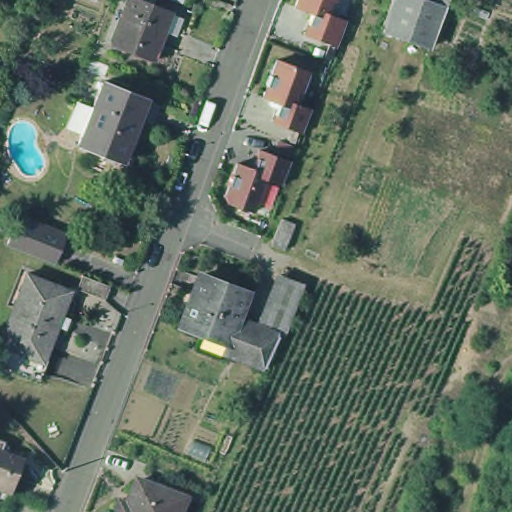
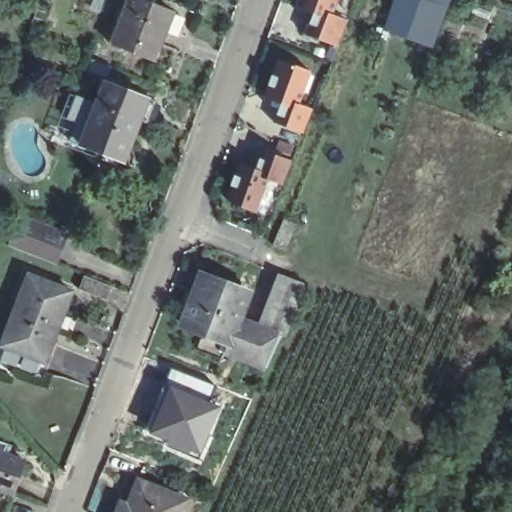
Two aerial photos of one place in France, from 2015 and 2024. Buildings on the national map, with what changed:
unchanged [(161,0),(159,4),(176,11),(157,59),(113,43),(131,0),(161,0)]
unchanged [(344,19),(335,45),(302,31),(309,12),(296,7),(298,0),(334,0),(329,12),(344,19)]
unchanged [(452,0),(437,40),(385,22),(393,0),(452,0)]
unchanged [(302,105),(313,109),(302,134),(272,124),(276,104),(261,101),(277,57),(315,70),(302,105)]
unchanged [(73,118),(74,117),(75,116),(86,89),(103,95),(112,71),(161,91),(154,111),(147,109),(137,135),(141,136),(142,139),(142,150),(142,154),(140,158),(136,161),(132,163),(126,164),(123,164),(120,164),(114,161),(101,155),(104,146),(86,139),(84,140),(82,141),(80,141),(77,141),(75,140),(73,139),(71,138),(70,135),(69,134),(68,129),(68,125),(69,123),(70,121),(72,119),(73,118)]
unchanged [(282,186),(267,179),(254,212),(220,199),(236,158),(253,162),(259,144),(298,155),(282,186)]
unchanged [(281,218),(293,223),(283,249),(270,243),(281,218)]
unchanged [(28,222),(52,233),(42,258),(18,248),(28,222)]
unchanged [(264,317),(284,264),(306,271),(307,272),(287,324),(284,323),(264,317)]
unchanged [(227,342),(225,346),(203,338),(208,324),(185,314),(204,265),(250,283),(240,309),(264,317),(284,323),(269,355),(227,342)]
unchanged [(9,342),(3,339),(30,269),(74,287),(46,356),(45,355),(39,370),(3,357),(9,342)]
unchanged [(87,270),(115,280),(109,294),(82,284),(87,270)]
new [(223,406),(201,456),(147,433),(168,386),(223,406)]
unchanged [(12,439),(9,449),(31,457),(18,491),(0,484),(0,435),(12,439)]
unchanged [(136,488),(186,508),(184,512),(126,512),(136,488)]
unchanged [(118,511),(121,512),(117,512),(118,511)]

